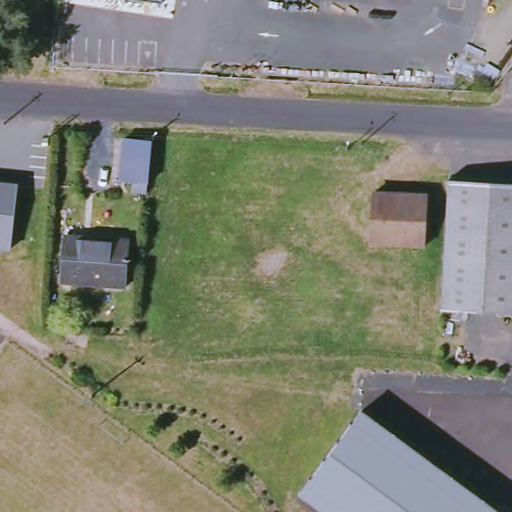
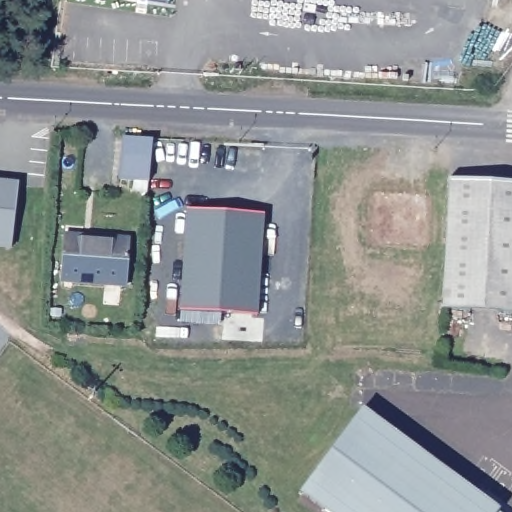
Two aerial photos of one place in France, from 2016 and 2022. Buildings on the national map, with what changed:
unchanged [(165,3),(148,0),(165,0),(165,3)]
unchanged [(152,140),(150,181),(122,180),(125,137),(152,140)]
unchanged [(446,231),(449,179),(512,183),(512,313),(442,309),(446,231)]
unchanged [(12,247),(0,246),(0,183),(18,185),(12,247)]
unchanged [(427,195),(425,246),(370,243),(373,193),(427,195)]
new [(187,218),(225,221),(262,224),(255,324),(180,318),(187,218)]
unchanged [(123,288),(60,284),(62,245),(63,235),(90,237),(126,239),(123,288)]
unchanged [(498,512),(328,512),(301,492),(361,411),(498,512)]

